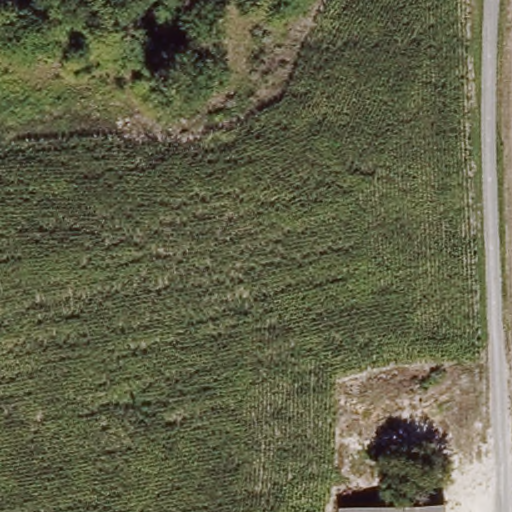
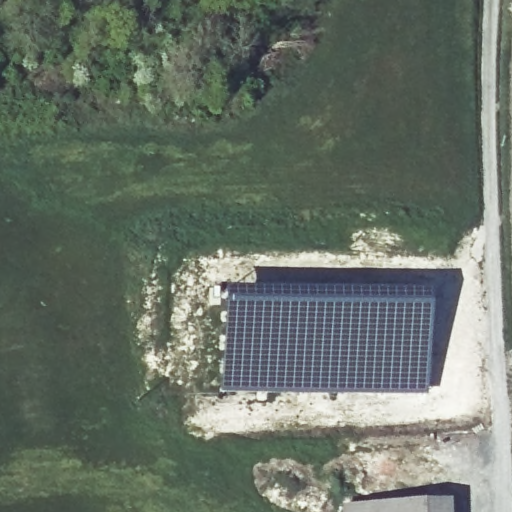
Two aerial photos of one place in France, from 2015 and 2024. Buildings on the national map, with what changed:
new [(429,292),(428,396),(219,395),(218,290),(429,292)]
unchanged [(443,498),(443,512),(373,512),(373,500),(443,498)]
unchanged [(373,500),(373,512),(335,512),(335,502),(373,500)]

